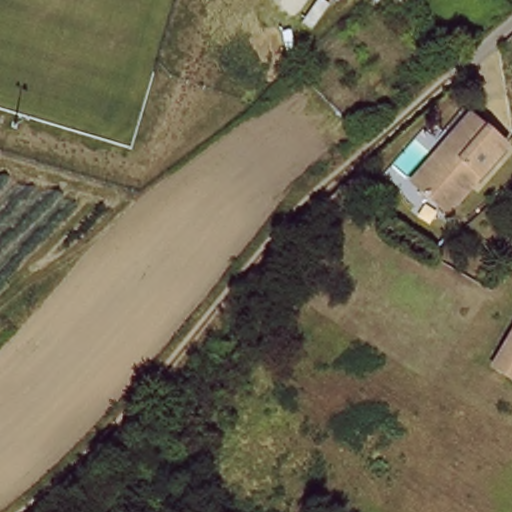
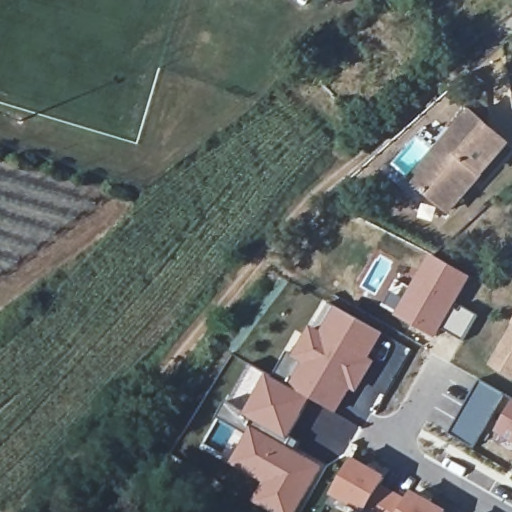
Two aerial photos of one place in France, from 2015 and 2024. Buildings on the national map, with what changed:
unchanged [(442,148),(472,113),(510,146),(448,215),(420,190),(411,182),(442,148)]
unchanged [(507,251),(512,243),(512,254),(507,251)]
new [(463,338),(443,327),(435,339),(393,314),(431,253),(472,276),(457,302),(477,314),(463,338)]
new [(327,301),(385,332),(370,358),(376,361),(357,393),(352,390),(337,413),(322,406),(313,401),(273,376),(327,301)]
unchanged [(490,365),(512,326),(512,378),(490,365)]
new [(313,401),(288,443),(253,421),(247,431),(239,426),(219,460),(198,446),(227,400),(249,364),(268,374),(273,376),(313,401)]
new [(479,380),(505,395),(473,448),(449,433),(479,380)]
new [(322,406),(337,413),(361,427),(339,458),(305,436),(322,406)]
new [(497,433),(512,409),(512,442),(497,433)]
new [(247,431),(253,421),(288,443),(325,465),(296,512),(268,512),(222,486),(223,484),(220,482),(228,466),(219,460),(239,426),(247,431)]
new [(335,494),(353,459),(383,476),(380,484),(410,501),(413,493),(445,512),(367,512),(365,511),(335,494)]

